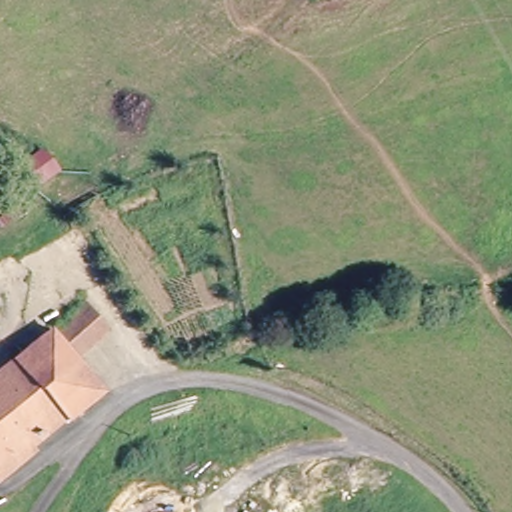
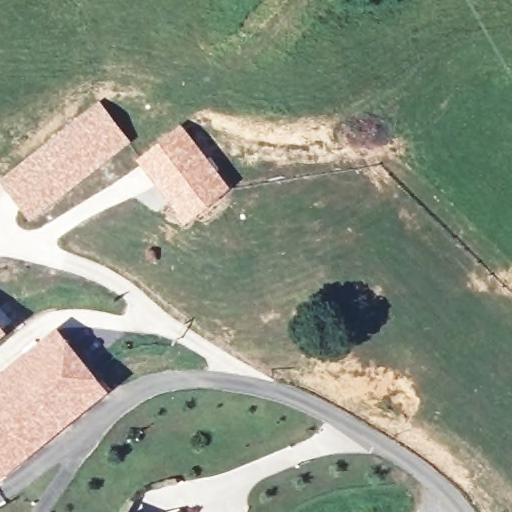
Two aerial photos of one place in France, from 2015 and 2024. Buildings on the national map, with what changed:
new [(131,140),(29,220),(0,182),(0,177),(99,101),(131,140)]
new [(229,186),(185,222),(135,157),(180,124),(229,186)]
new [(6,329),(0,334),(0,322),(6,329)]
unchanged [(71,360),(99,396),(62,425),(22,456),(26,461),(0,481),(0,374),(34,346),(50,333),(71,360)]

